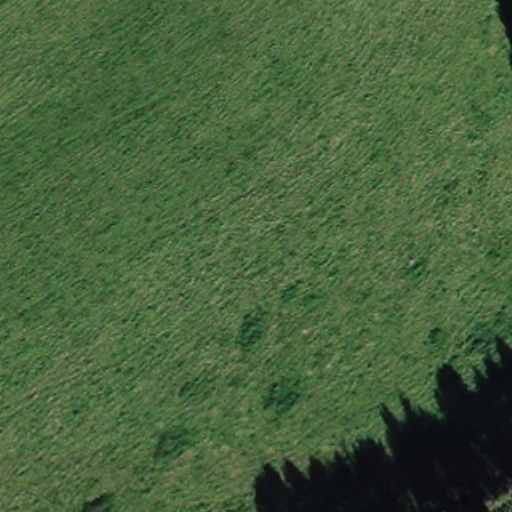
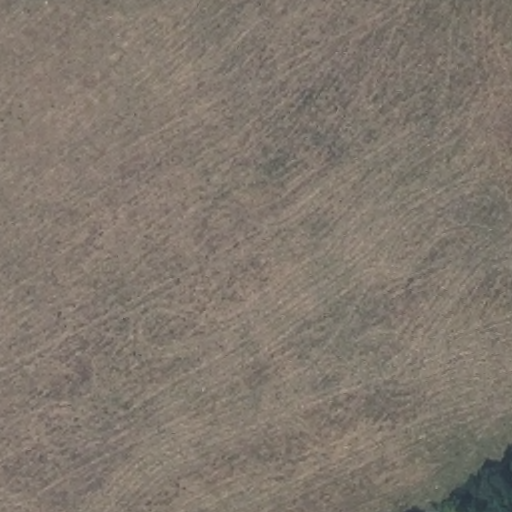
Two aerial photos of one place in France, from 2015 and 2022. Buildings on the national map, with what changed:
[]

